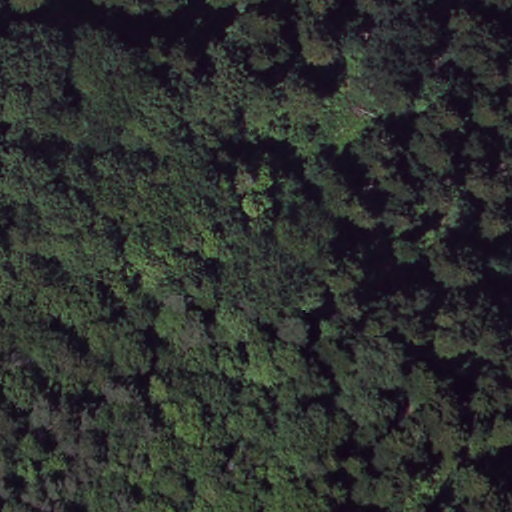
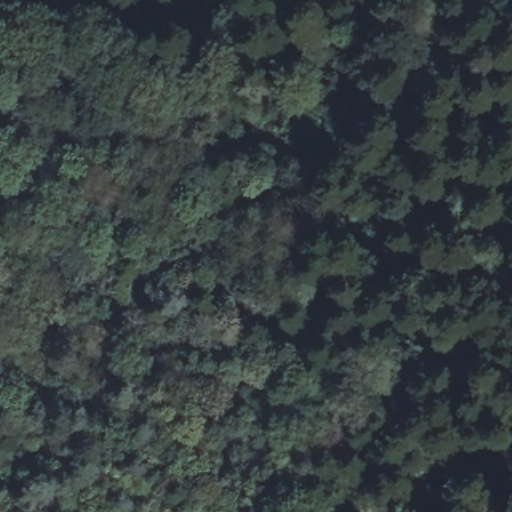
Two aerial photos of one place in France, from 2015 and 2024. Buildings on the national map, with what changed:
unchanged [(414,58),(421,61),(419,64),(402,105),(372,90),(389,46),(414,58)]

